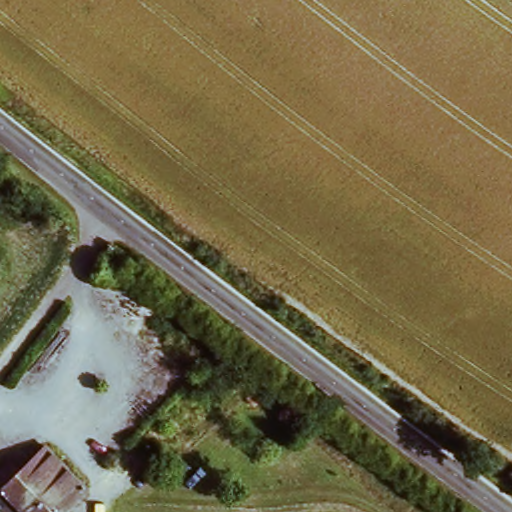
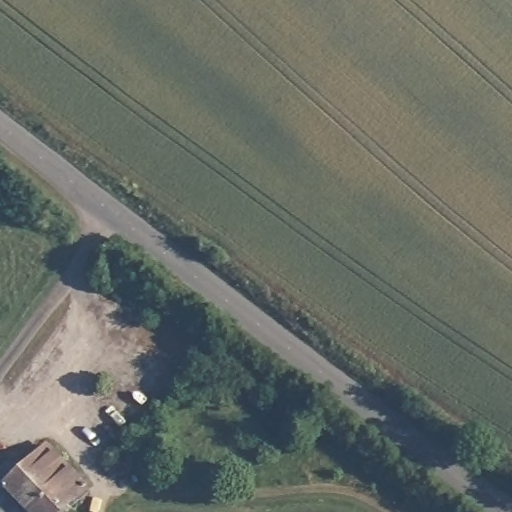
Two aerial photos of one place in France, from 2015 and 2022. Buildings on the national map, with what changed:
unchanged [(64,512),(21,512),(0,490),(0,477),(8,469),(17,480),(44,453),(83,493),(64,512)]
unchanged [(21,512),(0,512),(0,490),(21,512)]

